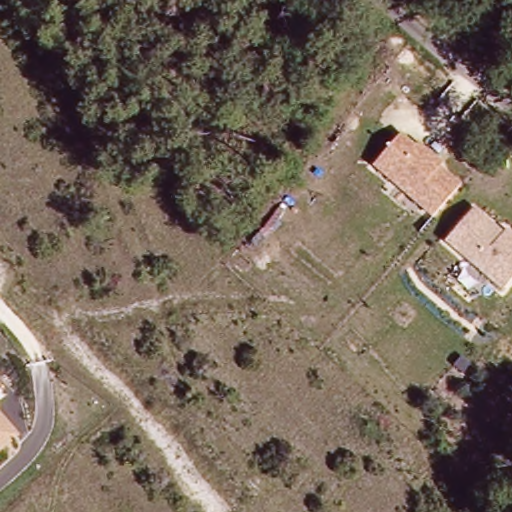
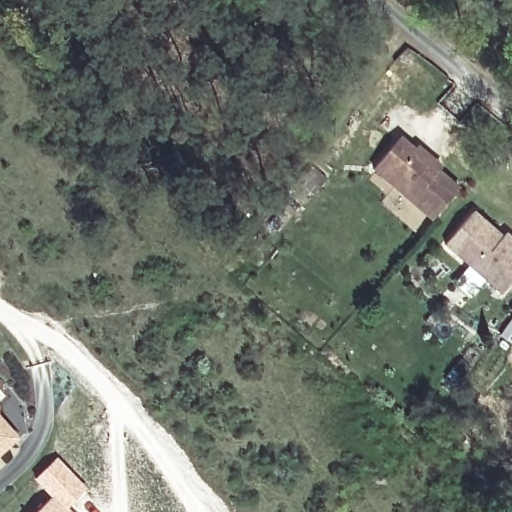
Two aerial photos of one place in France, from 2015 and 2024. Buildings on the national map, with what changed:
unchanged [(402,136),(415,147),(419,143),(445,165),(440,171),(460,189),(430,221),(375,171),(402,136)]
unchanged [(475,211),(504,237),(508,232),(512,236),(512,285),(503,294),(445,245),(475,211)]
unchanged [(0,454),(0,430),(0,426),(2,428),(14,442),(0,454)]
new [(49,496),(31,478),(51,459),(81,490),(61,508),(65,512),(32,512),(49,496)]

